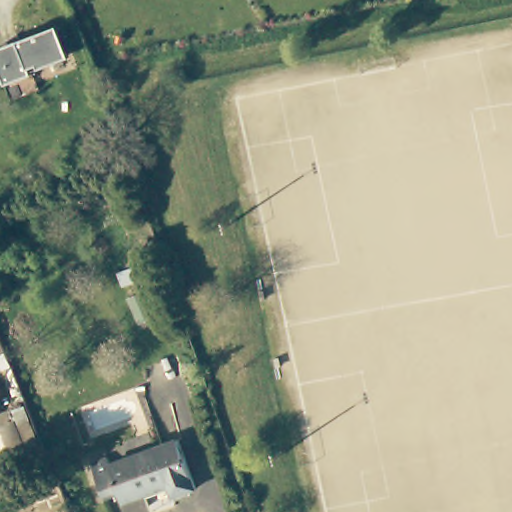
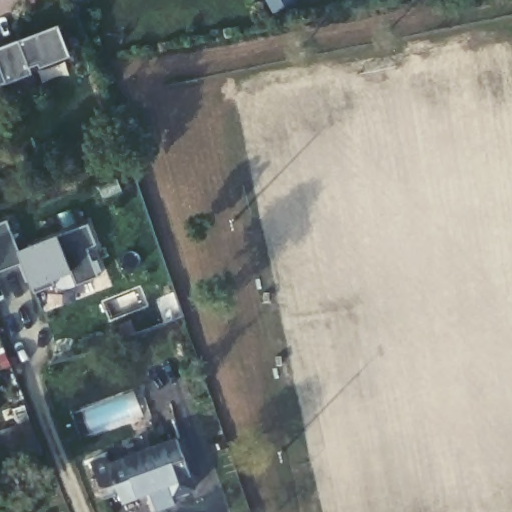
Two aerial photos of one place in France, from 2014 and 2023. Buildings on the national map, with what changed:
unchanged [(0,47),(60,24),(71,56),(42,70),(39,63),(32,65),(35,73),(8,83),(0,66),(0,47)]
new [(20,248),(58,234),(59,236),(88,225),(96,245),(86,248),(98,277),(76,285),(73,272),(56,278),(55,284),(35,292),(35,286),(31,287),(21,262),(0,271),(0,224),(6,221),(20,248)]
unchanged [(192,486),(168,495),(164,482),(119,498),(113,485),(100,491),(89,461),(105,454),(106,458),(174,434),(192,486)]

